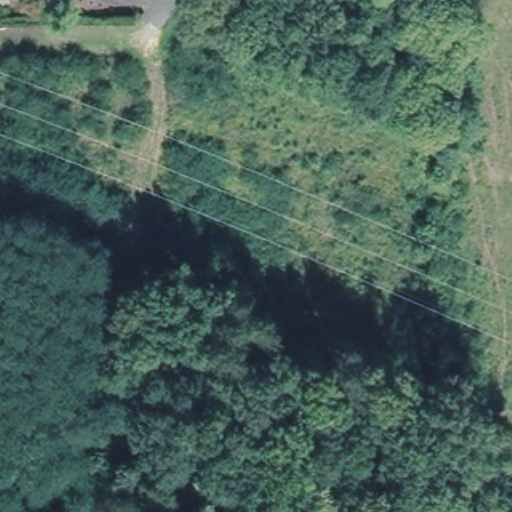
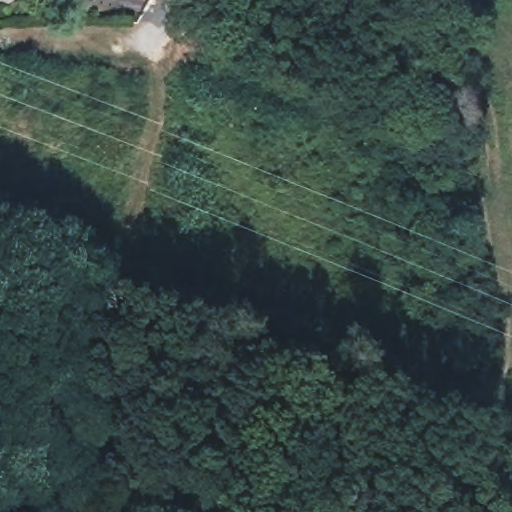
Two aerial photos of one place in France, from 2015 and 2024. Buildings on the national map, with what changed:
unchanged [(0,4),(0,0),(11,0),(2,6),(0,4)]

